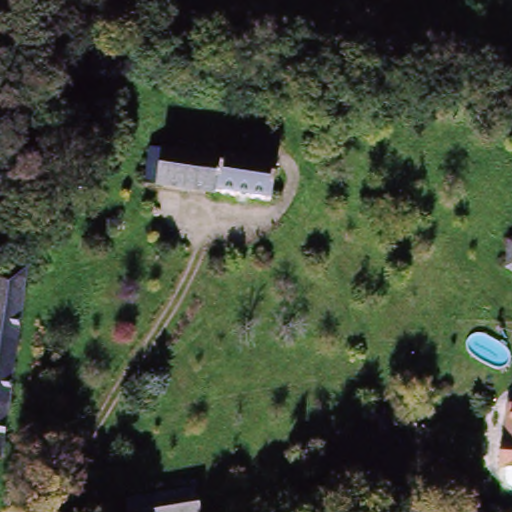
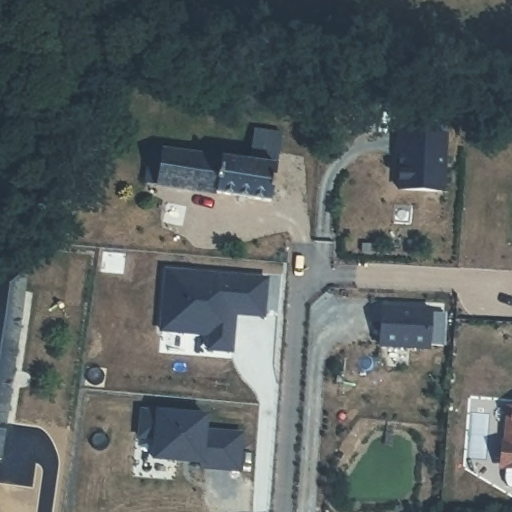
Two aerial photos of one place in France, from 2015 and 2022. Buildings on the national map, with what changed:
unchanged [(147,184),(152,149),(252,164),(257,131),(282,134),(276,168),(271,202),(147,184)]
new [(451,143),(447,200),(403,197),(406,161),(402,161),(403,140),(451,143)]
demolished [(87,178),(89,163),(100,164),(99,179),(87,178)]
unchanged [(0,278),(27,273),(24,291),(7,403),(0,456),(0,278)]
new [(167,274),(270,283),(266,320),(237,317),(230,323),(236,331),(234,355),(211,352),(212,338),(162,334),(167,274)]
new [(386,310),(435,312),(433,351),(385,348),(386,310)]
unchanged [(510,480),(502,477),(500,470),(501,461),(498,461),(501,399),(512,400),(512,480),(510,480)]
new [(143,415),(208,420),(207,435),(244,438),(242,475),(202,472),(203,467),(156,464),(157,443),(141,442),(143,415)]

